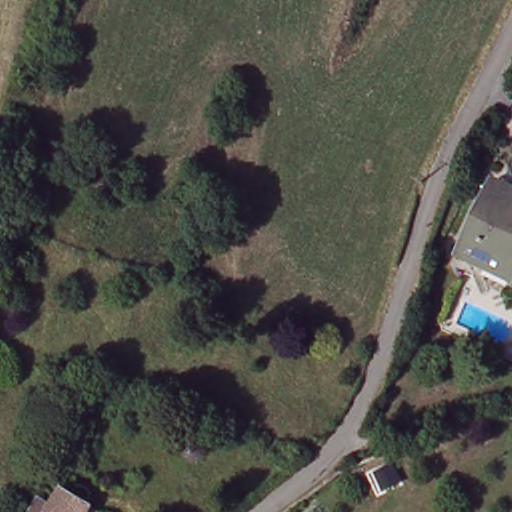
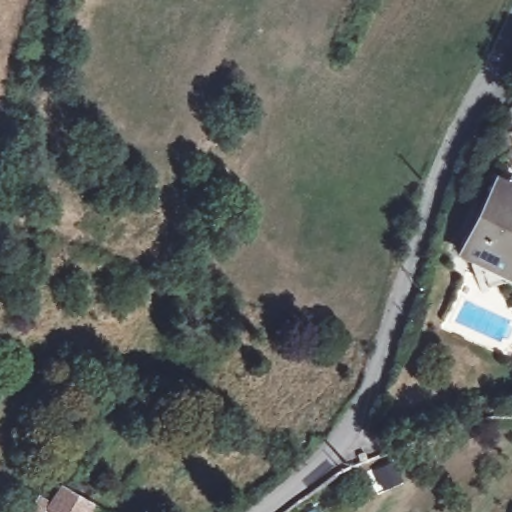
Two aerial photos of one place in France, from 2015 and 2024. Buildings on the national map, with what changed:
unchanged [(498,181),(512,188),(512,276),(464,254),(498,181)]
unchanged [(45,499),(56,506),(66,489),(72,492),(74,493),(77,488),(83,488),(92,492),(94,498),(92,503),(95,505),(92,512),(37,512),(45,499)]

